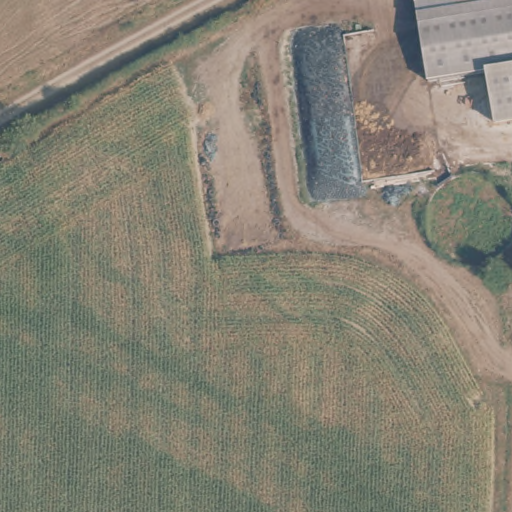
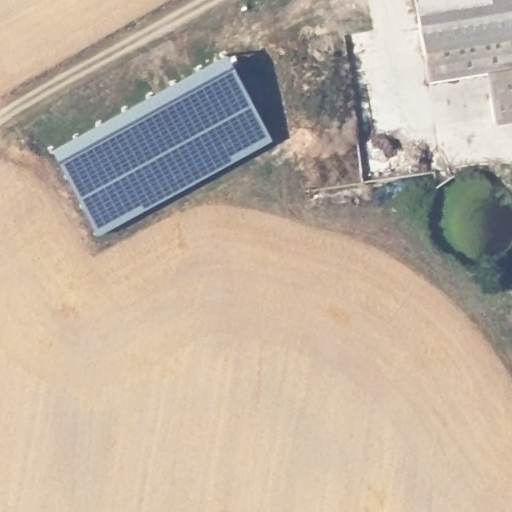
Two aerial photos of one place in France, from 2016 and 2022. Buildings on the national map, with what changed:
unchanged [(420,18),(417,0),(495,0),(496,6),(420,18)]
unchanged [(495,0),(512,0),(512,29),(423,43),(420,18),(496,6),(495,0)]
unchanged [(512,121),(492,125),(483,77),(426,82),(423,43),(512,29),(512,121)]
new [(224,50),(270,135),(96,229),(50,144),(224,50)]

